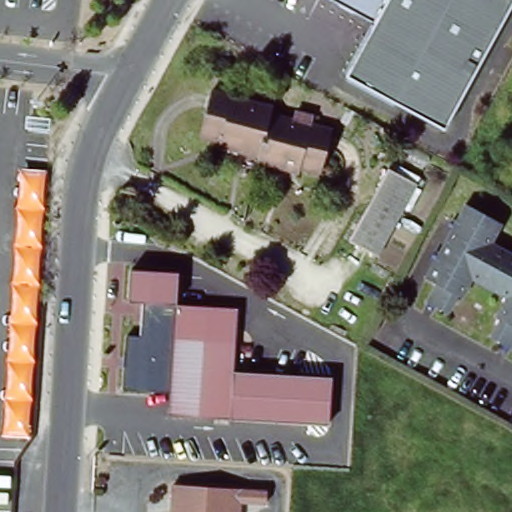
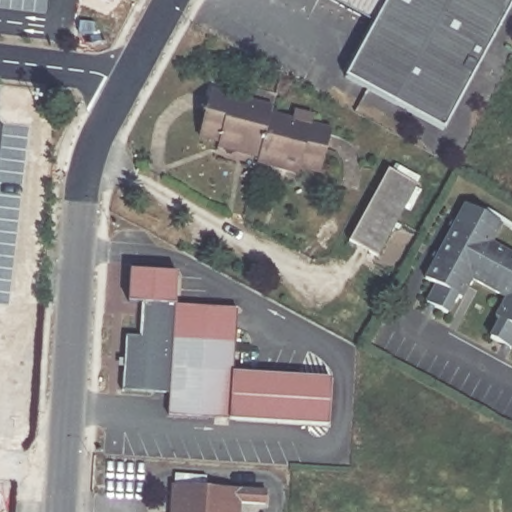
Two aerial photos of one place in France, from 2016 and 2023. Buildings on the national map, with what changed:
unchanged [(376,26),(361,18),(327,1),(326,0),(390,0),(376,26)]
unchanged [(444,128),(346,76),(376,26),(390,0),(512,0),(512,3),(444,128)]
unchanged [(204,141),(217,93),(272,107),(270,111),(257,159),(237,154),(220,150),(221,145),(204,141)]
unchanged [(274,170),(256,165),(257,159),(270,111),(323,125),(312,173),(291,167),(290,174),(274,170)]
unchanged [(350,245),(391,175),(417,191),(377,260),(350,245)]
unchanged [(510,354),(490,344),(499,328),(493,324),(501,311),(466,292),(459,305),(453,302),(445,317),(424,306),(433,289),(425,284),(466,211),(500,230),(493,242),(512,251),(512,350),(510,354)]
unchanged [(169,394),(122,392),(125,339),(141,340),(143,308),(127,307),(128,274),(175,277),(173,309),(237,313),(234,376),(332,381),(328,428),(167,418),(169,394)]
unchanged [(264,492),(263,504),(240,502),(240,512),(170,512),(172,486),(264,492)]

